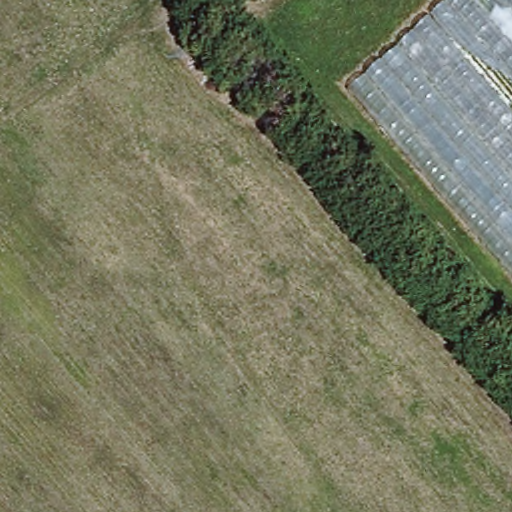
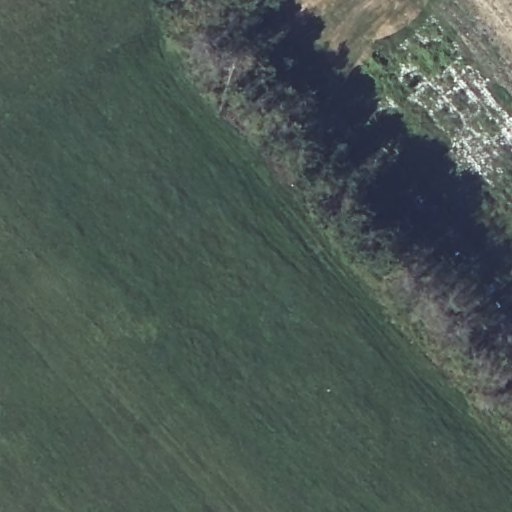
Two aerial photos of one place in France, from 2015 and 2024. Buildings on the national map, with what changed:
demolished [(443,0),(512,0),(512,274),(350,86),(443,0)]

